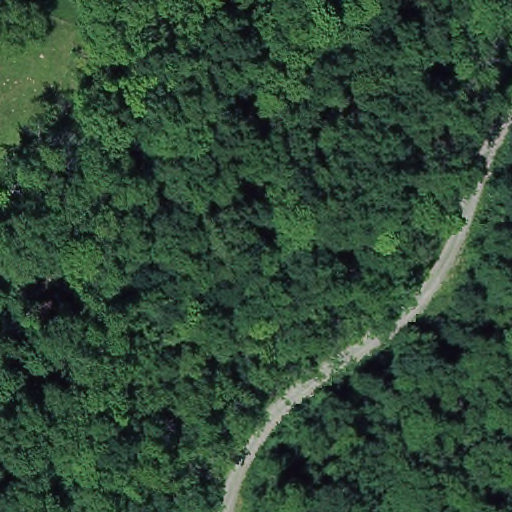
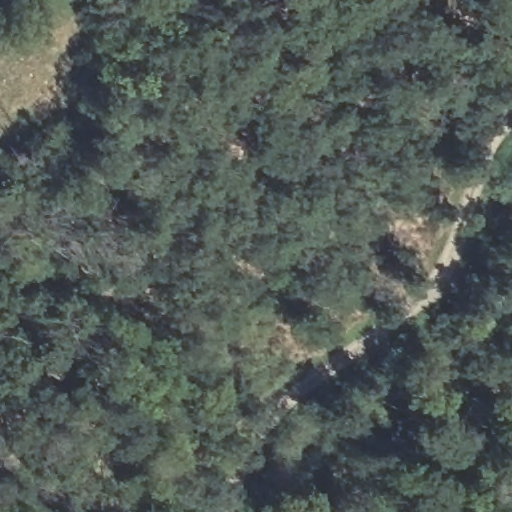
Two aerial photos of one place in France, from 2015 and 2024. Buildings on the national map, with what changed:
[]

